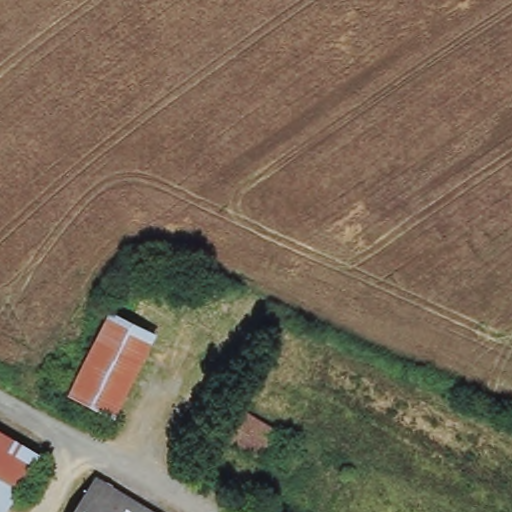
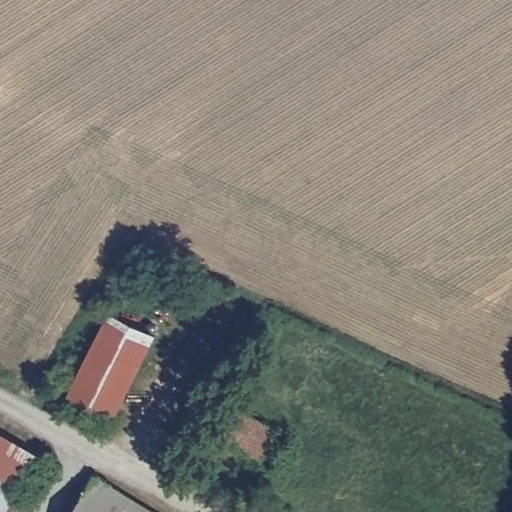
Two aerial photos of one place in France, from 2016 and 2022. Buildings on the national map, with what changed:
unchanged [(155,336),(115,417),(70,395),(110,313),(155,336)]
unchanged [(277,435),(265,458),(221,433),(233,408),(279,431),(277,435)]
unchanged [(0,430),(39,454),(19,487),(0,475),(0,430)]
unchanged [(0,475),(19,487),(4,512),(0,512),(0,475)]
unchanged [(96,481),(153,512),(77,512),(96,481)]

